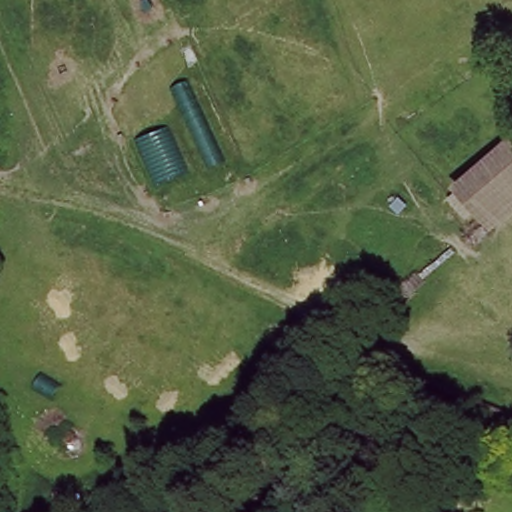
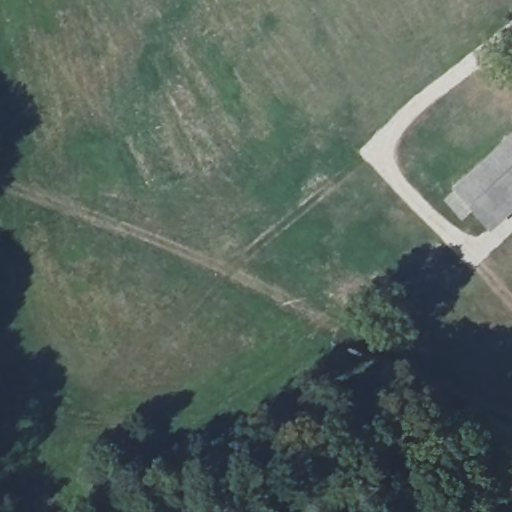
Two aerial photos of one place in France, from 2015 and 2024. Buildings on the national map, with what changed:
new [(188,79),(222,159),(206,166),(171,86),(188,79)]
new [(163,127),(183,169),(154,183),(134,141),(163,127)]
unchanged [(454,191),(512,138),(512,210),(490,231),(454,191)]

